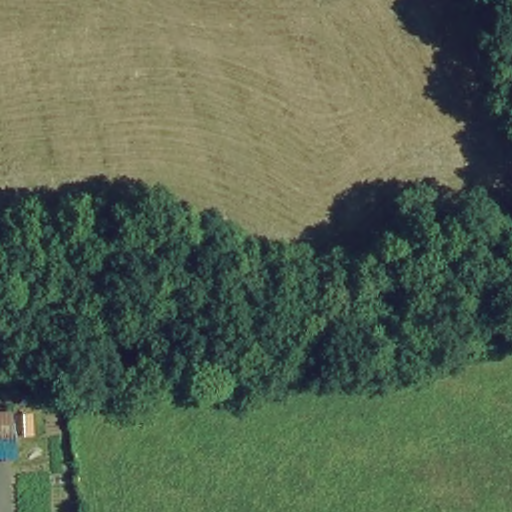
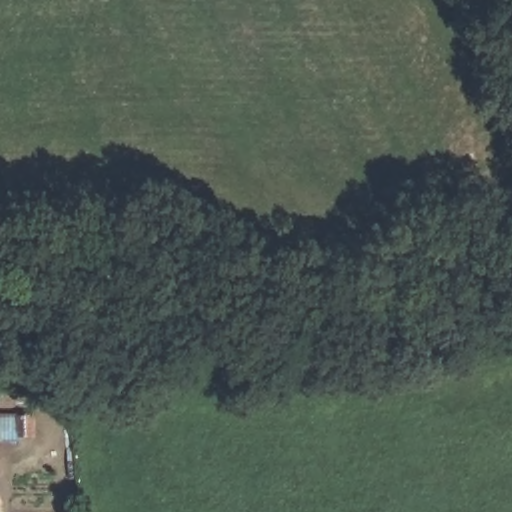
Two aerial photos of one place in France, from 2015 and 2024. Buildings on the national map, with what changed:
unchanged [(17,439),(0,440),(0,412),(16,411),(17,439)]

